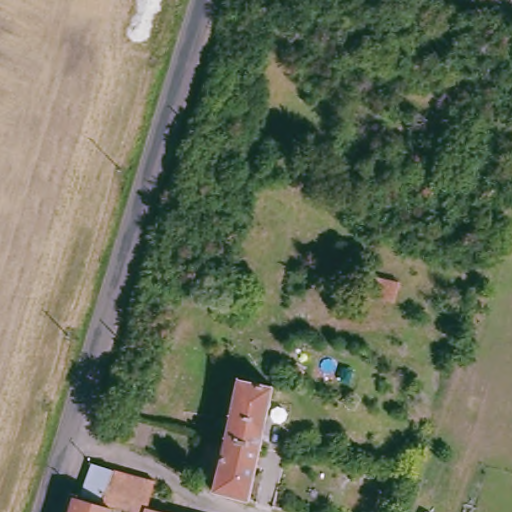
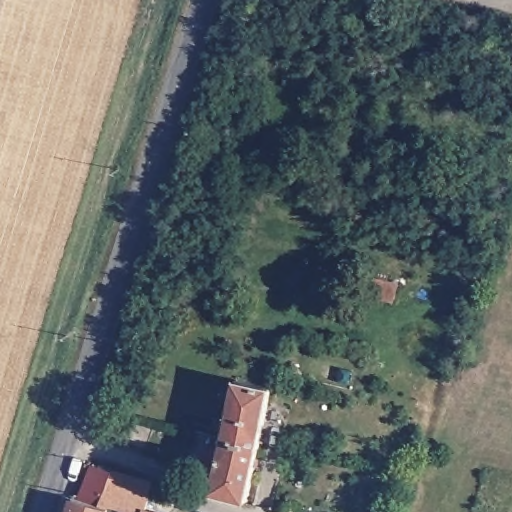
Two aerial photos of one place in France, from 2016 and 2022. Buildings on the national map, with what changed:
unchanged [(223,432),(235,375),(271,383),(260,440),(223,432)]
unchanged [(260,440),(247,500),(211,489),(215,467),(205,464),(207,451),(218,453),(223,432),(260,440)]
unchanged [(150,512),(73,512),(76,499),(81,500),(91,466),(157,486),(150,512)]

